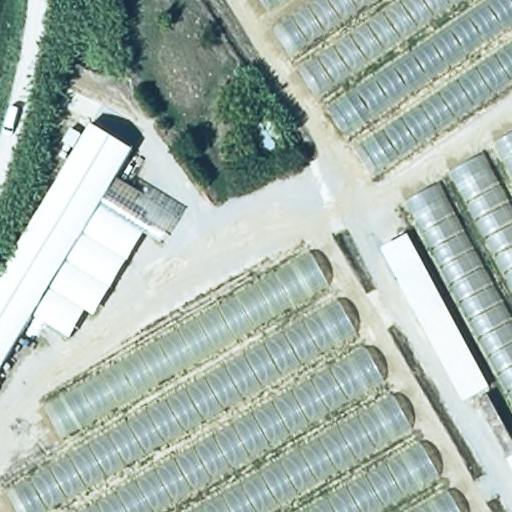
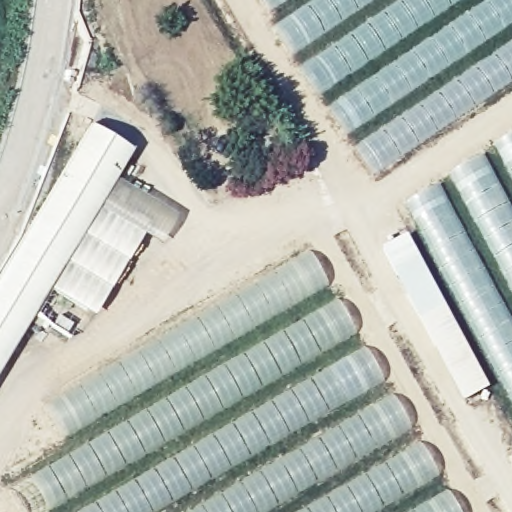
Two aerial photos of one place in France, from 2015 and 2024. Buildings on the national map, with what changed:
unchanged [(512,0),(512,78),(368,175),(271,27),(253,0),(512,0)]
unchanged [(243,127),(268,117),(284,146),(261,157),(243,127)]
unchanged [(512,127),(512,407),(402,202),(512,127)]
unchanged [(130,154),(116,178),(177,212),(163,236),(103,202),(0,375),(0,274),(87,129),(130,154)]
unchanged [(404,236),(484,390),(463,402),(380,249),(404,236)]
unchanged [(6,492),(62,462),(35,412),(309,253),(457,512),(16,512),(6,492)]

